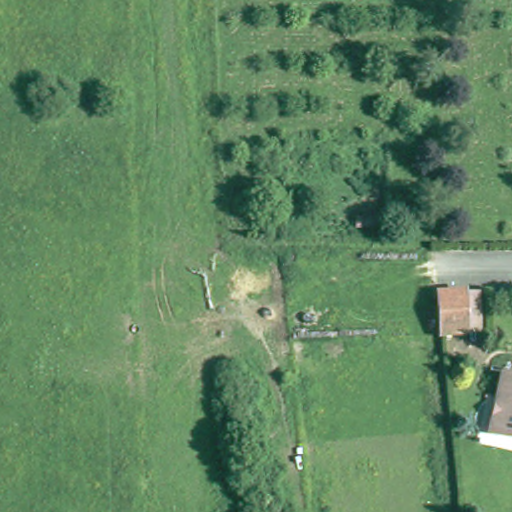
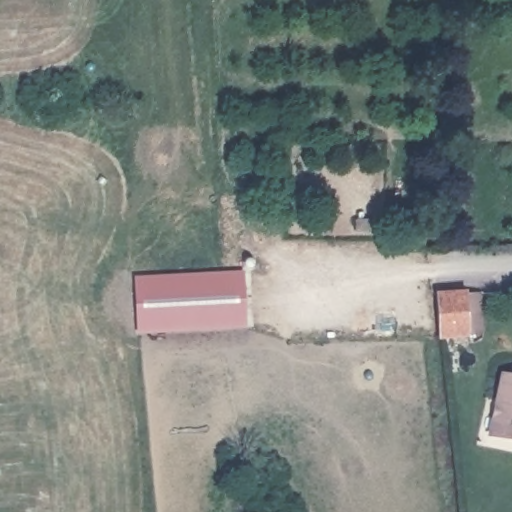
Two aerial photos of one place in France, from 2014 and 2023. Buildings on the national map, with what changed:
new [(244,272),(247,329),(136,335),(133,278),(244,272)]
unchanged [(479,335),(440,341),(435,291),(477,292),(479,335)]
unchanged [(512,375),(512,437),(493,432),(505,374),(512,375)]

